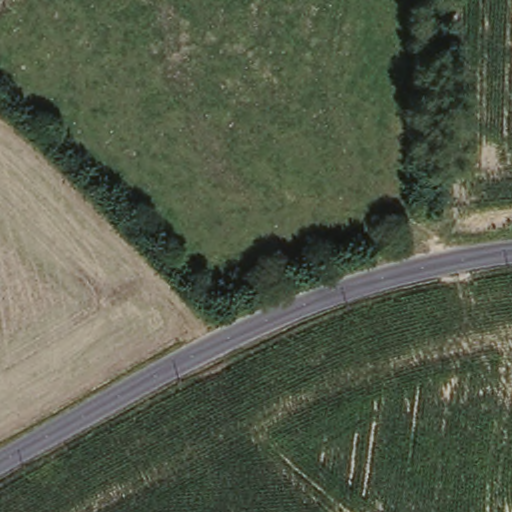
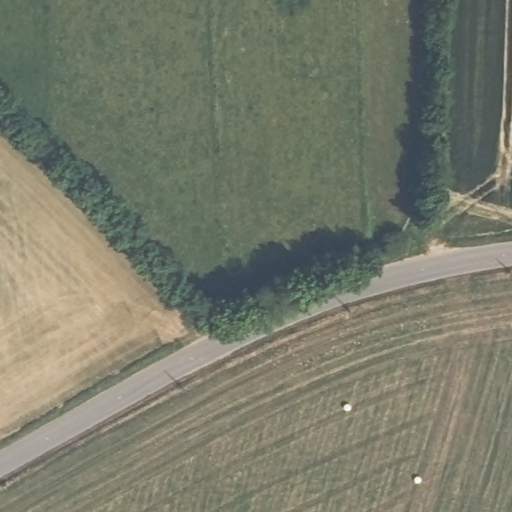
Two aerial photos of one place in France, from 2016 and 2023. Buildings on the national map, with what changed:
[]

